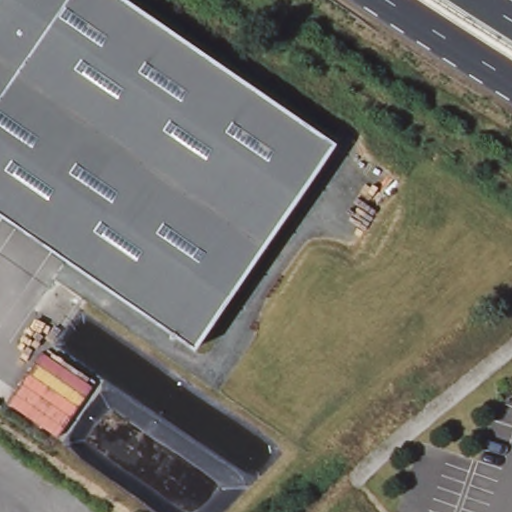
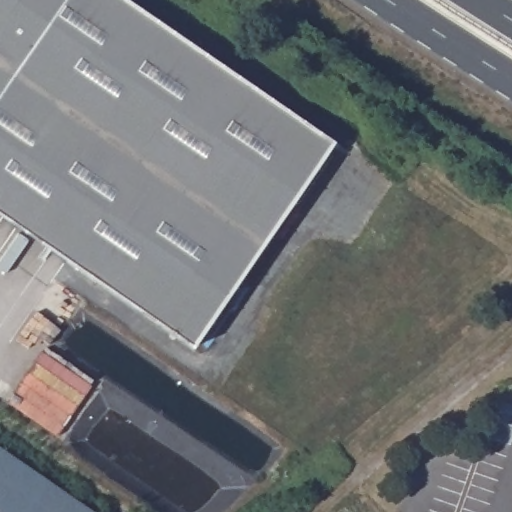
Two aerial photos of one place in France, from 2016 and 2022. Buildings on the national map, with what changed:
unchanged [(335,140),(192,344),(0,211),(0,0),(130,0),(335,140)]
new [(0,512),(0,446),(96,512),(0,512)]

